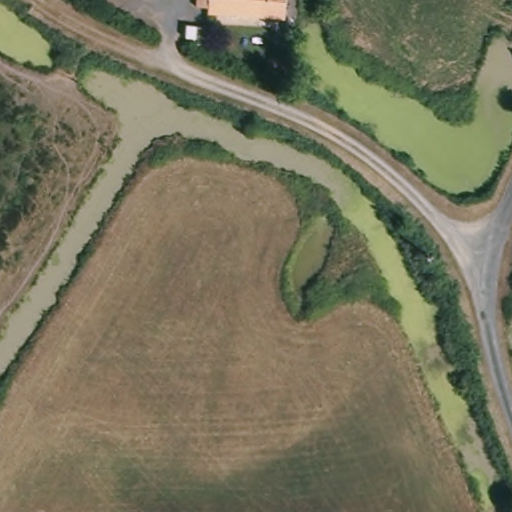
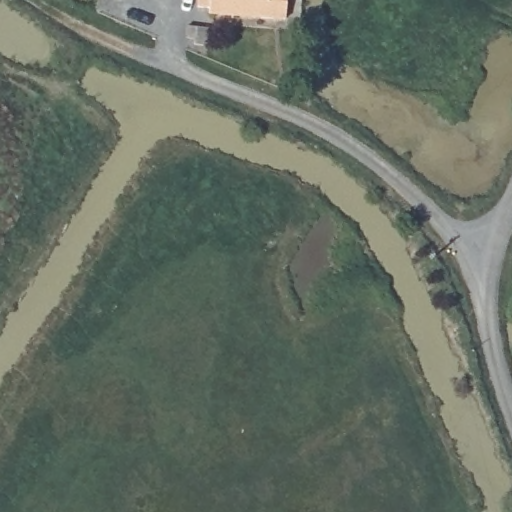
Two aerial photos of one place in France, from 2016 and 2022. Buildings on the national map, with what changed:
unchanged [(209,10),(209,0),(287,0),(287,16),(209,10)]

